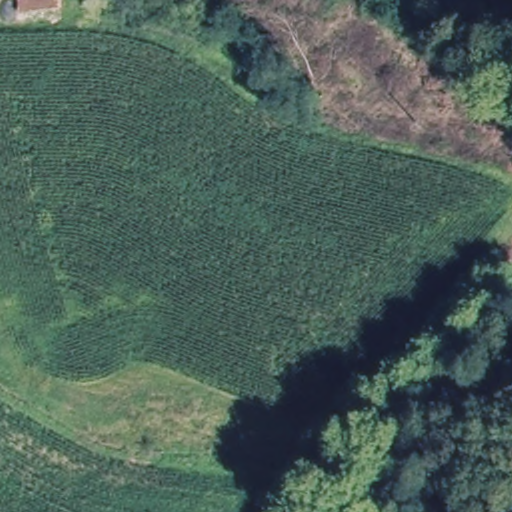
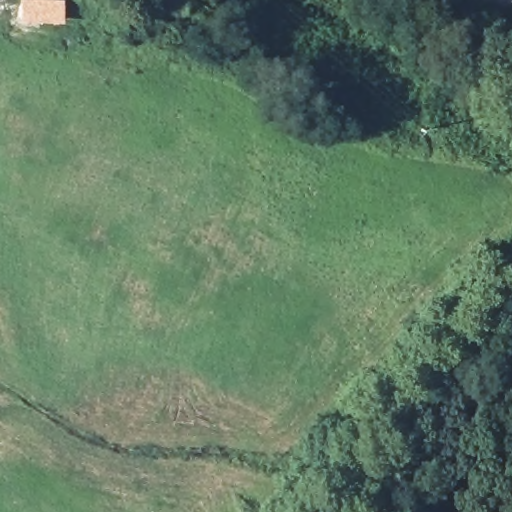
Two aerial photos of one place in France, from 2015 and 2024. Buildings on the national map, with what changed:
unchanged [(22,15),(20,0),(54,0),(55,10),(47,11),(22,15)]

